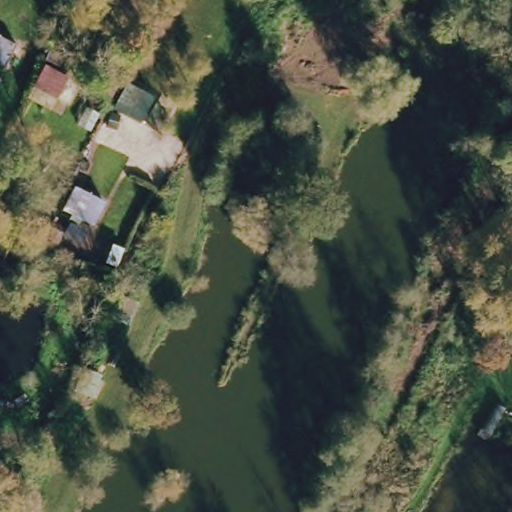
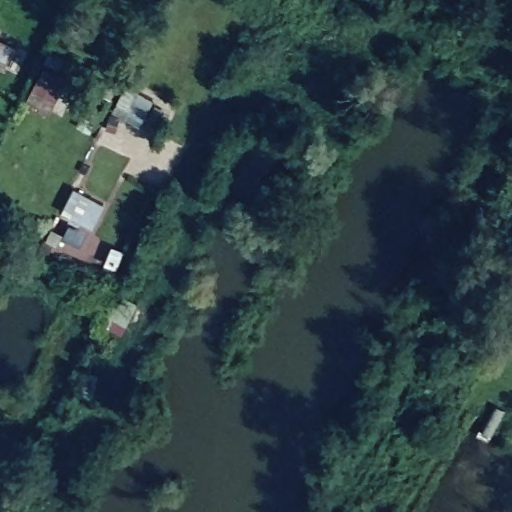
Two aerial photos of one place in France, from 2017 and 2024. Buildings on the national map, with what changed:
unchanged [(131,82),(159,95),(146,122),(118,110),(131,82)]
unchanged [(77,186),(111,201),(99,227),(67,213),(77,186)]

